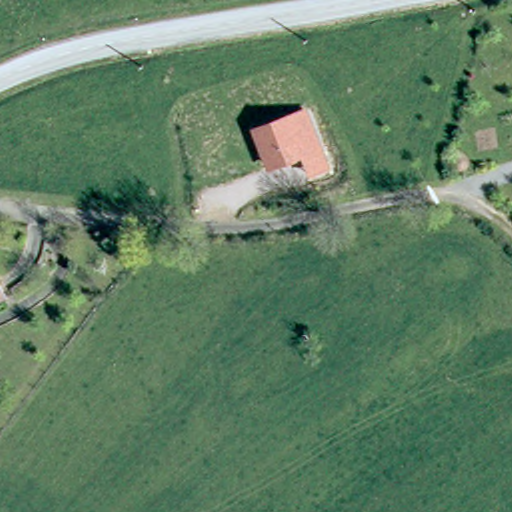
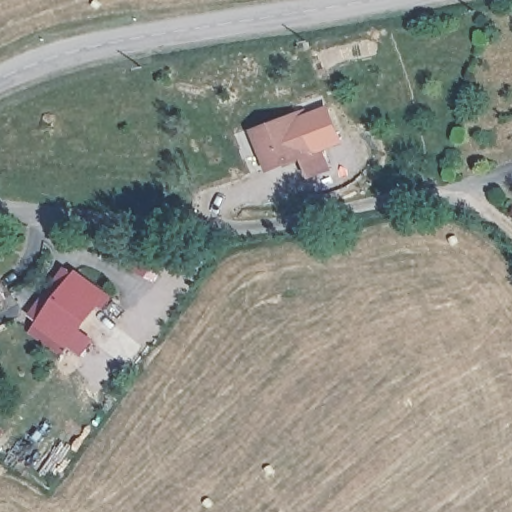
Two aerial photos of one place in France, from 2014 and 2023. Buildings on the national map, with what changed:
unchanged [(332,169),(310,180),(303,160),(269,170),(253,130),(308,107),(332,169)]
new [(73,271),(75,268),(110,292),(68,348),(62,356),(29,332),(34,325),(37,319),(28,313),(65,266),(73,271)]

